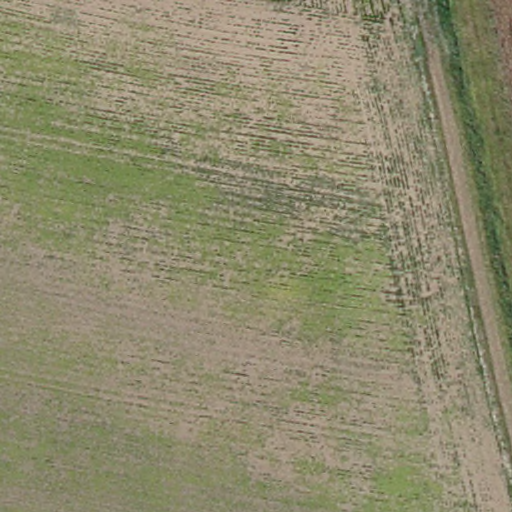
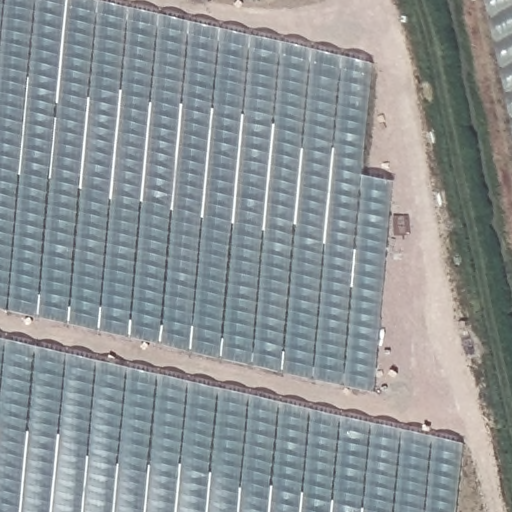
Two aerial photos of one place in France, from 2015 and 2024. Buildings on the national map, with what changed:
new [(0,0),(99,0),(372,63),(364,176),(395,182),(377,391),(0,307),(0,0)]
new [(488,0),(512,0),(512,115),(488,0)]
new [(458,512),(0,512),(0,338),(465,443),(458,512)]

